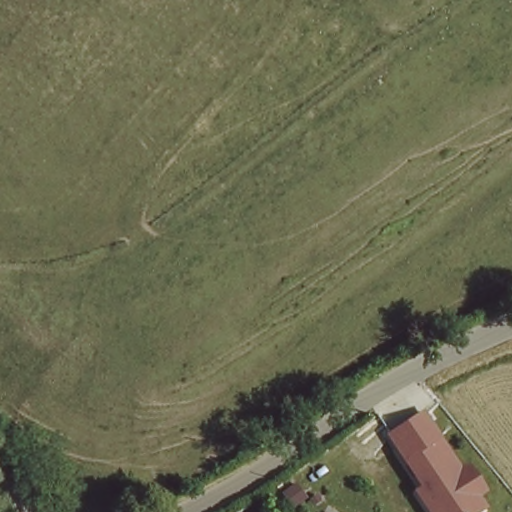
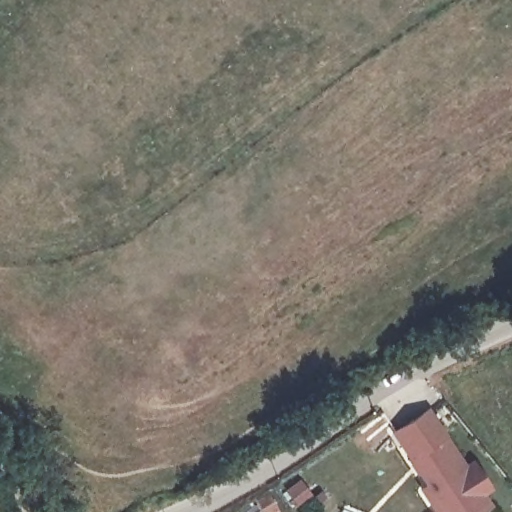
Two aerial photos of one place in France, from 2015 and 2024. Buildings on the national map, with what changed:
unchanged [(478,462),(497,491),(487,495),(494,507),(486,512),(435,512),(419,487),(425,483),(391,433),(429,407),(469,466),(478,462)]

